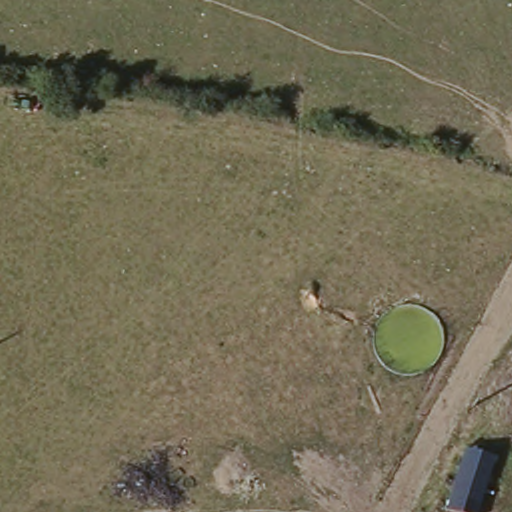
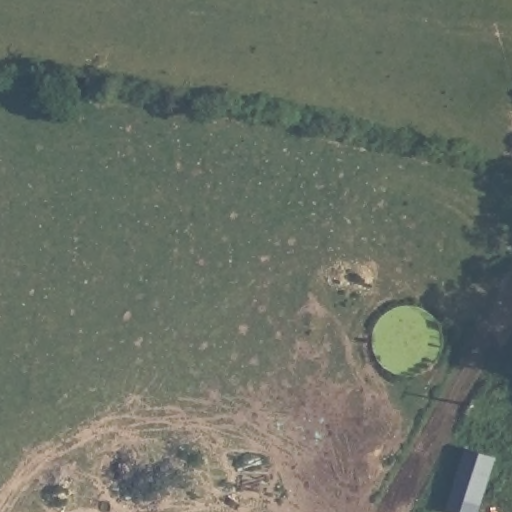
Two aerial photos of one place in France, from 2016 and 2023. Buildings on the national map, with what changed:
unchanged [(479,512),(445,512),(463,443),(496,451),(479,512)]

